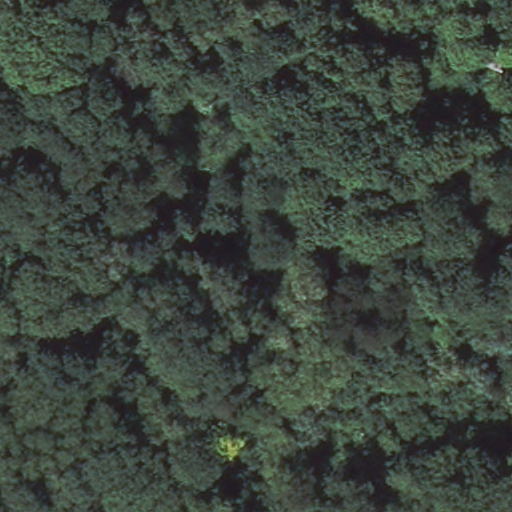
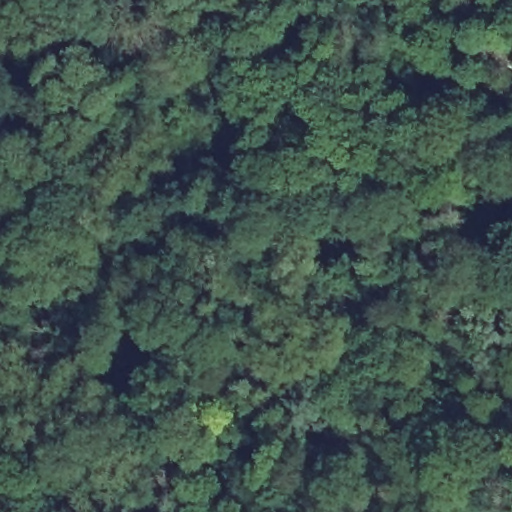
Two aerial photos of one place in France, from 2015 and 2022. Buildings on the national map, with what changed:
unchanged [(498,9),(512,15),(512,63),(472,49),(498,9)]

